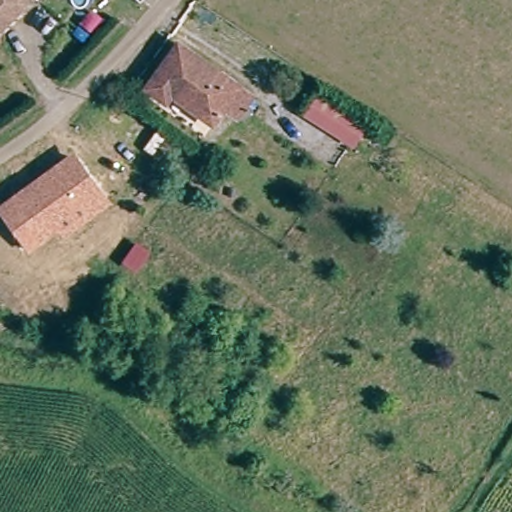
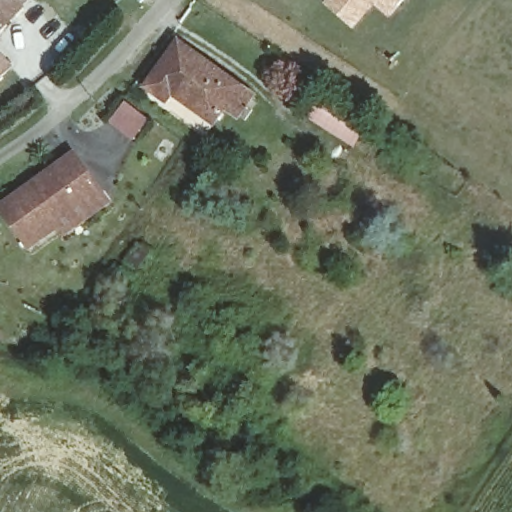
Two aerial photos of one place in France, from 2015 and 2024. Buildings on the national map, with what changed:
unchanged [(21,8),(0,28),(0,0),(27,0),(20,6),(21,8)]
new [(390,21),(376,8),(355,30),(325,6),(330,0),(407,0),(390,21)]
unchanged [(251,90),(245,100),(256,107),(250,116),(239,109),(236,114),(220,103),(210,118),(167,90),(162,99),(143,86),(175,39),(251,90)]
new [(0,85),(0,53),(15,69),(0,85)]
unchanged [(355,131),(350,140),(306,112),(312,103),(320,91),(363,119),(355,131)]
unchanged [(67,167),(80,158),(104,192),(60,223),(62,226),(32,247),(6,211),(27,196),(24,192),(39,181),(65,163),(67,167)]
unchanged [(132,269),(124,263),(135,245),(144,251),(132,269)]

